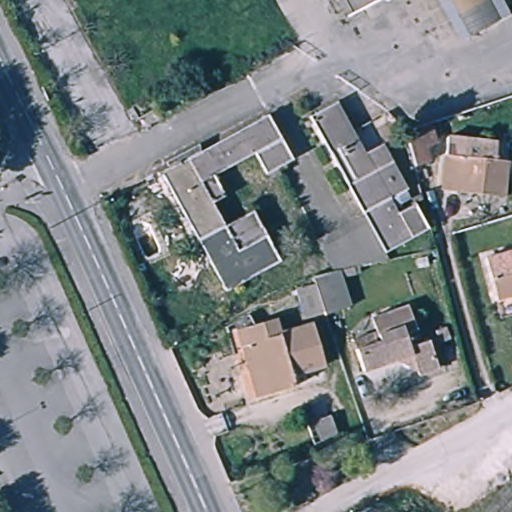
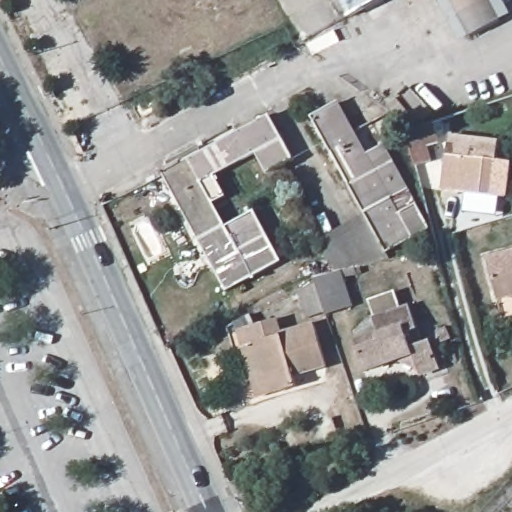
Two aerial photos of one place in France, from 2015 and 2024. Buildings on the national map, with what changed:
unchanged [(351,17),(342,0),(383,0),(351,17)]
unchanged [(498,22),(470,38),(450,0),(487,0),(498,22)]
unchanged [(311,119),(336,106),(362,158),(381,148),(404,190),(385,203),(395,217),(411,207),(425,231),(382,255),(362,217),(311,119)]
unchanged [(292,158),(278,167),(267,173),(253,152),(210,175),(222,194),(209,201),(222,225),(249,210),(277,258),(223,287),(158,168),(176,159),(174,155),(193,144),(199,153),(268,116),(292,158)]
unchanged [(440,146),(431,148),(435,163),(415,169),(411,152),(406,134),(417,131),(434,125),(440,146)]
unchanged [(492,149),(491,163),(507,164),(503,198),(442,192),(447,144),(492,149)]
unchanged [(382,255),(385,262),(352,269),(332,274),(316,242),(362,217),(382,255)]
unchanged [(489,256),(512,250),(512,294),(501,297),(489,256)]
unchanged [(294,291),(311,287),(309,280),(332,274),(352,269),(354,276),(342,280),(349,309),(321,317),(320,314),(303,320),(294,291)]
unchanged [(420,339),(426,337),(435,365),(416,372),(409,355),(361,372),(350,338),(377,329),(371,314),(406,302),(420,339)]
unchanged [(292,331),(309,326),(323,370),(290,379),(293,390),(257,400),(236,330),(287,316),(292,331)]
unchanged [(337,434),(311,444),(303,423),(329,413),(337,434)]

